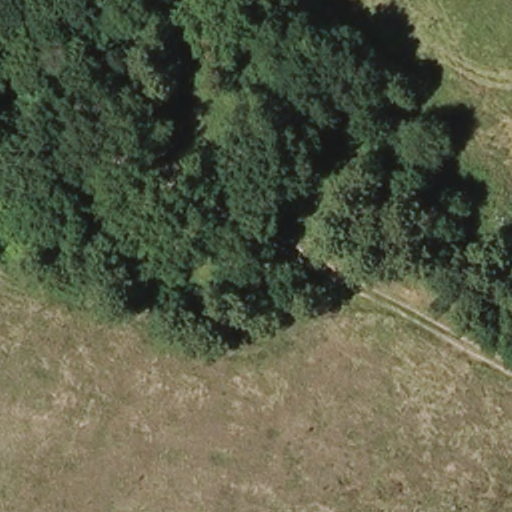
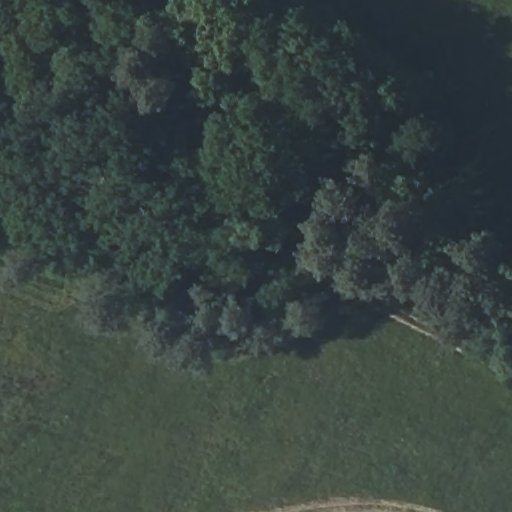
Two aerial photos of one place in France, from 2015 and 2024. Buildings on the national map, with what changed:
[]

